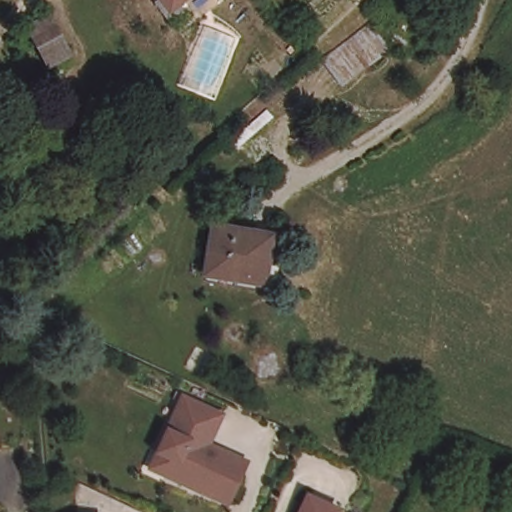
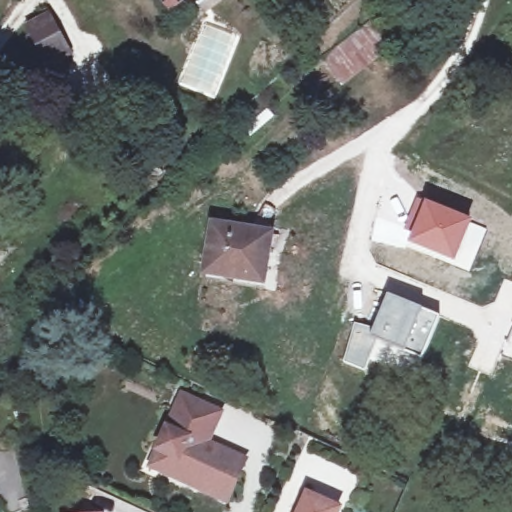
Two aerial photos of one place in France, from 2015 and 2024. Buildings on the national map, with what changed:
unchanged [(189,19),(179,5),(181,5),(177,0),(193,0),(201,11),(189,19)]
unchanged [(50,63),(41,46),(31,27),(48,18),(57,37),(66,54),(50,63)]
unchanged [(372,21),(389,44),(339,81),(323,59),(372,21)]
unchanged [(156,165),(163,174),(144,186),(138,177),(156,165)]
new [(469,272),(454,265),(406,244),(415,220),(409,217),(417,197),(473,222),(487,230),(469,272)]
unchanged [(214,226),(271,235),(263,282),(206,272),(214,226)]
new [(373,327),(388,295),(442,318),(422,361),(379,342),(369,337),(373,327)]
new [(352,322),(373,327),(369,337),(379,342),(366,372),(341,362),(352,322)]
unchanged [(159,446),(184,392),(221,409),(208,438),(221,445),(246,457),(228,497),(166,468),(151,462),(159,446)]
unchanged [(333,512),(303,512),(308,501),(333,512)]

